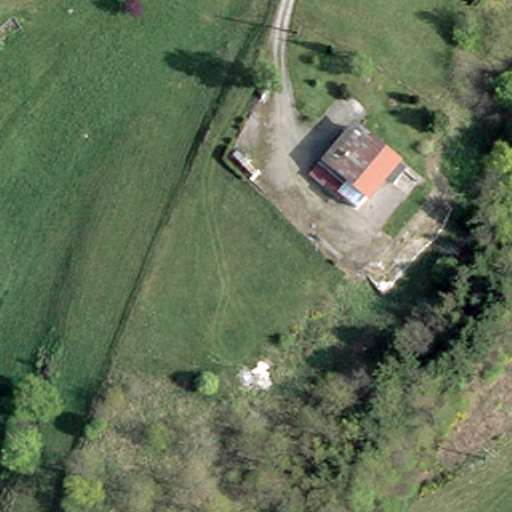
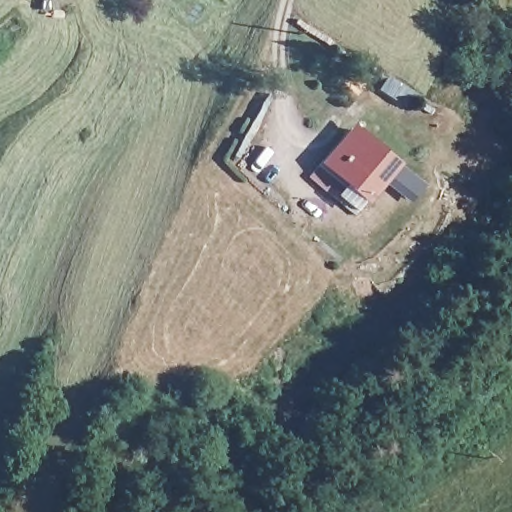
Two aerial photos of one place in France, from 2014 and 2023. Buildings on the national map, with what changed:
unchanged [(325,157),(352,125),(401,166),(389,179),(383,173),(355,202),(305,171),(321,154),(325,157)]

